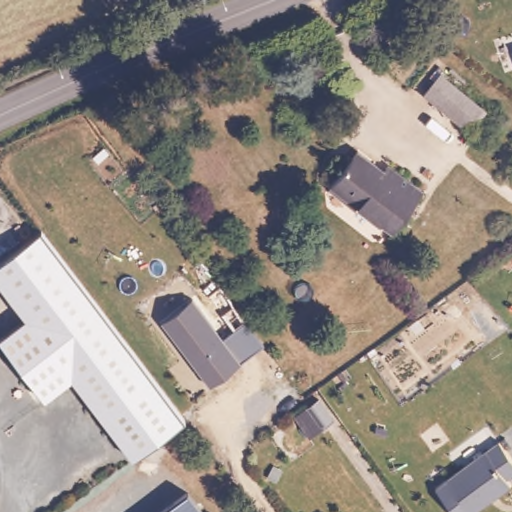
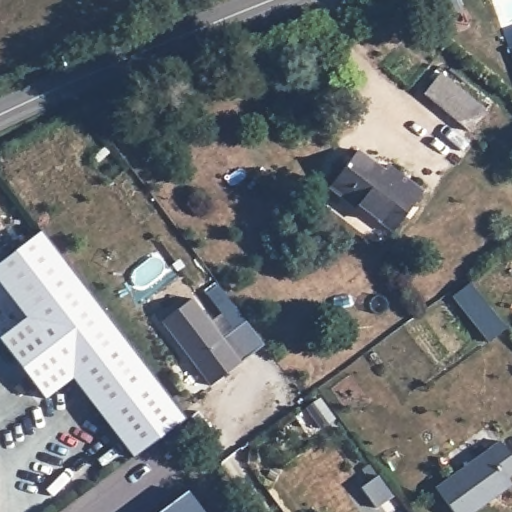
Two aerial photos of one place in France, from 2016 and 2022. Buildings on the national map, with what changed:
unchanged [(470,130),(425,96),(441,76),(482,110),(470,130)]
unchanged [(395,228),(331,181),(357,149),(380,166),(386,162),(422,191),(395,228)]
unchanged [(25,316),(0,282),(0,259),(40,229),(77,276),(25,316)]
unchanged [(172,400),(185,417),(133,456),(71,375),(43,396),(0,340),(0,335),(25,316),(77,276),(172,400)]
new [(470,287),(509,330),(490,344),(452,300),(470,287)]
unchanged [(208,386),(160,323),(191,299),(223,340),(247,321),(265,345),(208,386)]
unchanged [(433,496),(484,460),(497,450),(512,469),(512,482),(505,487),(510,493),(509,493),(495,504),(487,509),(483,512),(445,512),(433,496)]
unchanged [(203,512),(160,512),(187,491),(203,512)]

